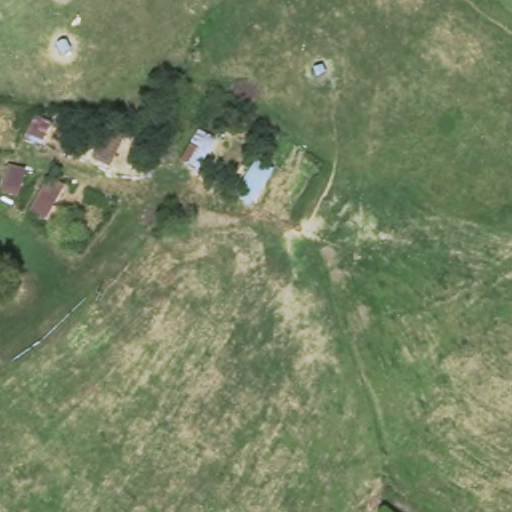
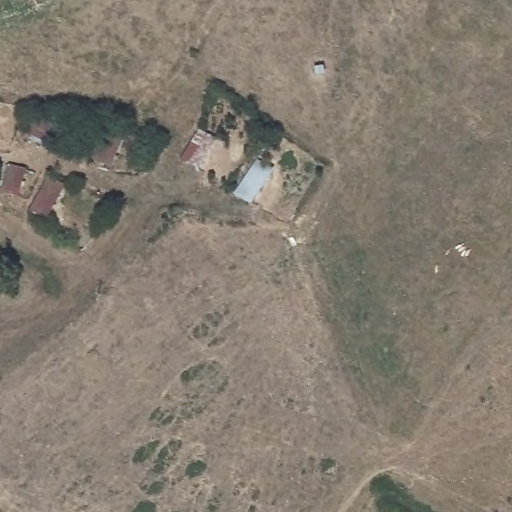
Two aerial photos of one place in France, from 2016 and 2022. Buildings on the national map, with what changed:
unchanged [(180,163),(199,129),(217,140),(198,171),(180,163)]
unchanged [(229,198),(253,159),(272,171),(250,208),(229,198)]
unchanged [(28,209),(45,177),(60,188),(47,220),(28,209)]

